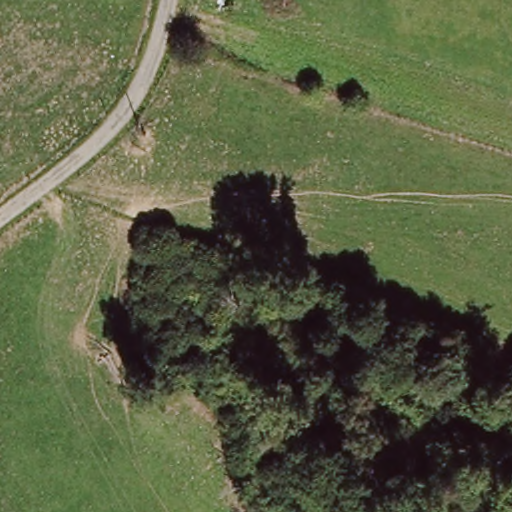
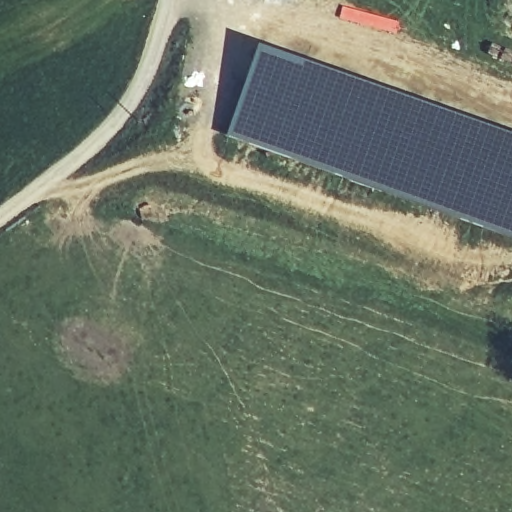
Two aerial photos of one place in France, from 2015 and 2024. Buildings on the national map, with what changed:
new [(329,81),(512,145),(512,241),(472,227),(383,195),(223,142),(251,56),(329,81)]

